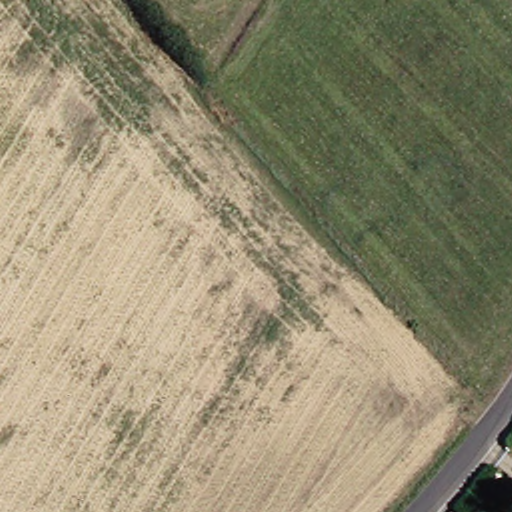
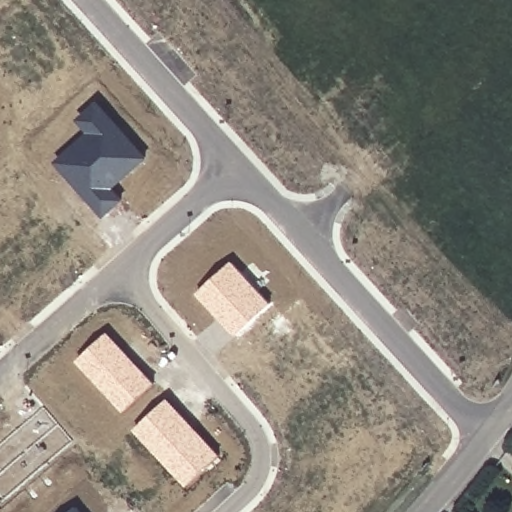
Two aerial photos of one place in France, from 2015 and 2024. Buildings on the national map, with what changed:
new [(56,161),(89,132),(78,119),(100,100),(149,157),(115,187),(125,200),(104,217),(56,161)]
new [(196,293),(233,260),(272,302),(236,335),(196,293)]
new [(109,331),(155,382),(122,412),(76,360),(109,331)]
new [(168,398),(221,455),(187,487),(134,430),(168,398)]
new [(0,501),(0,444),(44,407),(73,442),(0,501)]
new [(79,505),(85,512),(71,512),(79,505)]

